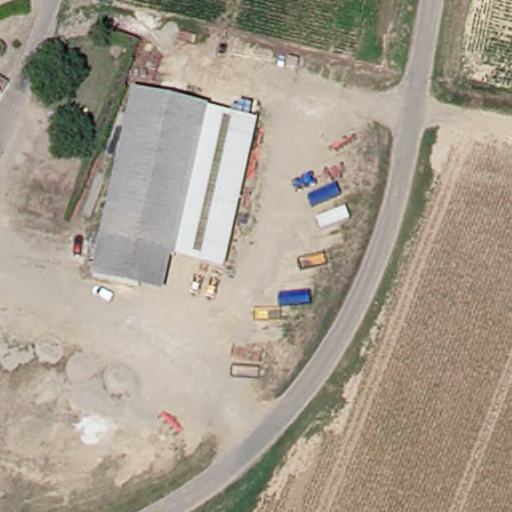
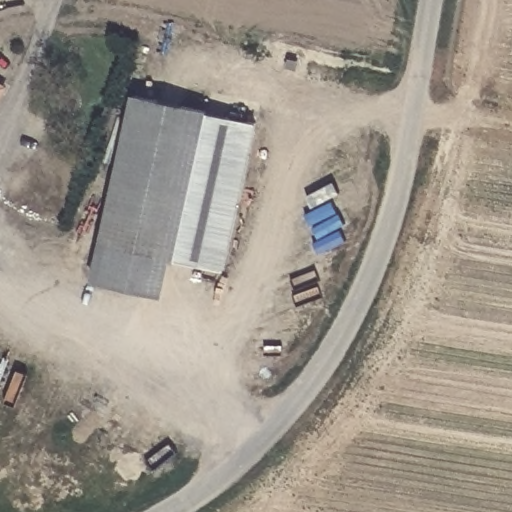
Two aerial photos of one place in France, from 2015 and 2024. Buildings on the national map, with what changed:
unchanged [(5,85),(0,93),(0,82),(5,85)]
unchanged [(147,104),(150,93),(202,105),(170,239),(116,226),(147,104)]
unchanged [(177,256),(166,253),(170,239),(202,105),(221,110),(188,258),(177,256)]
unchanged [(188,258),(221,110),(251,116),(215,265),(188,258)]
unchanged [(116,226),(170,239),(166,253),(177,256),(166,295),(102,280),(116,226)]

